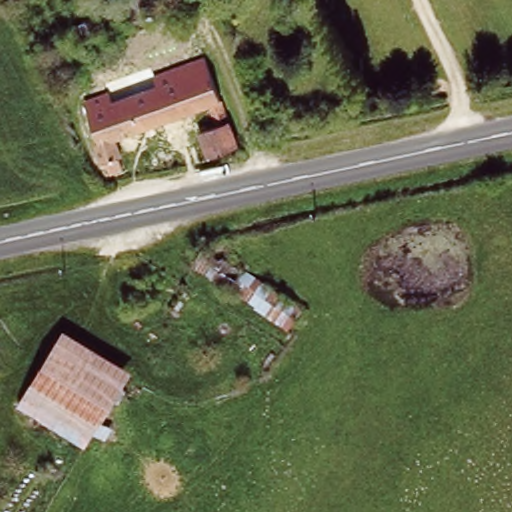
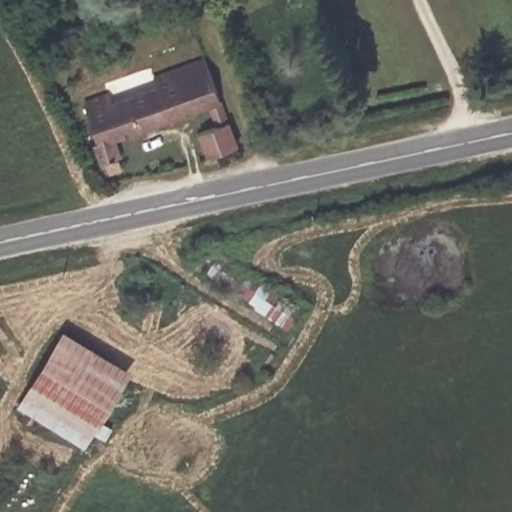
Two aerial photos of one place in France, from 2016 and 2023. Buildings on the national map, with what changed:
unchanged [(206,105),(113,139),(125,165),(113,168),(108,156),(103,157),(97,139),(90,141),(86,130),(93,128),(83,99),(103,92),(108,102),(125,96),(121,85),(202,55),(226,121),(213,125),(206,105)]
unchanged [(213,125),(226,121),(237,150),(203,158),(193,132),(213,125)]
unchanged [(189,275),(201,253),(304,296),(289,331),(189,275)]
unchanged [(128,368),(84,443),(16,403),(64,329),(128,368)]

